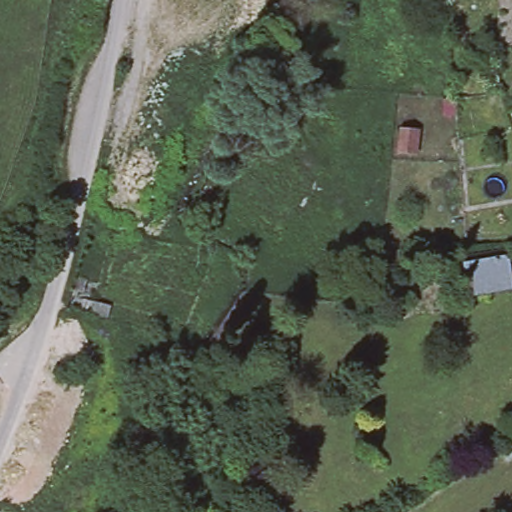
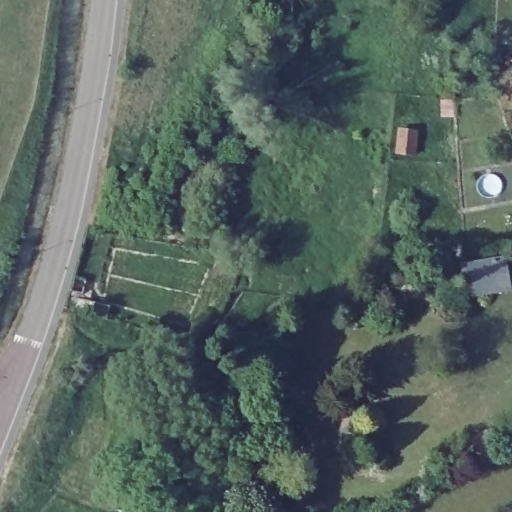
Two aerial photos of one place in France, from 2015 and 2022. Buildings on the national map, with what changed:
unchanged [(511,290),(463,294),(460,265),(507,257),(511,290)]

